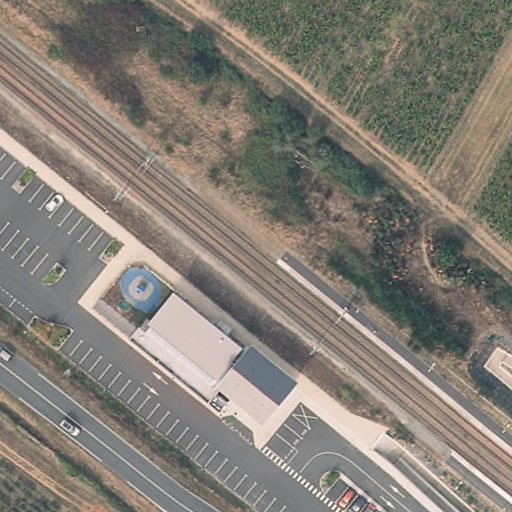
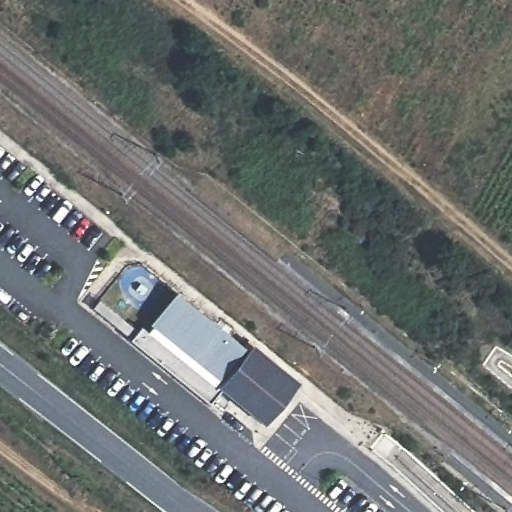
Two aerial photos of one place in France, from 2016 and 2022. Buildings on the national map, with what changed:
unchanged [(207,398),(129,337),(139,325),(147,330),(152,324),(149,322),(176,290),(248,348),(222,379),(207,398)]
unchanged [(222,379),(248,348),(292,385),(266,416),(222,379)]

